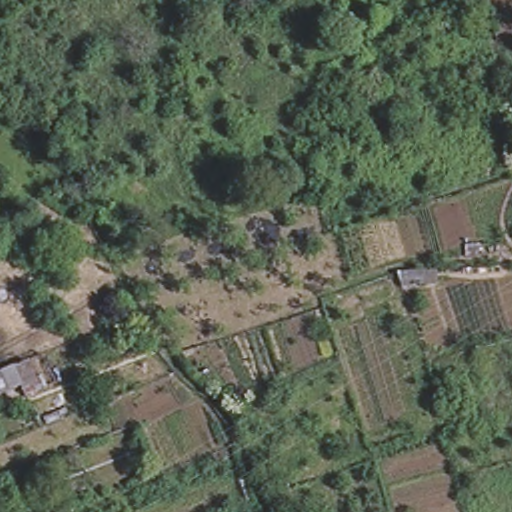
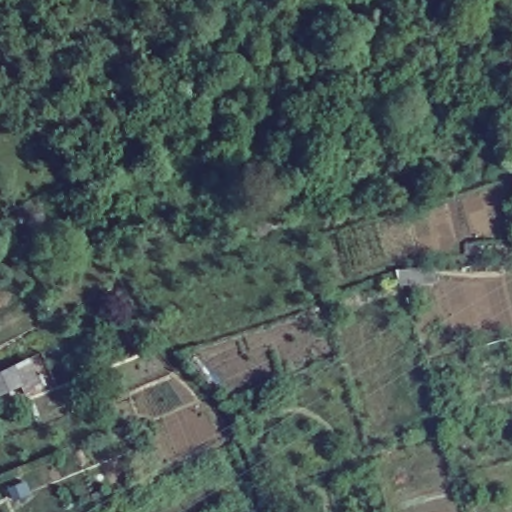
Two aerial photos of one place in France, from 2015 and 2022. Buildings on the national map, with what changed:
unchanged [(24,387),(5,395),(0,398),(0,374),(15,367),(24,387)]

